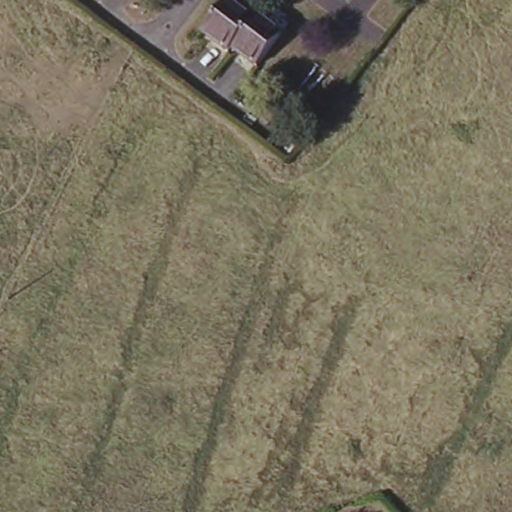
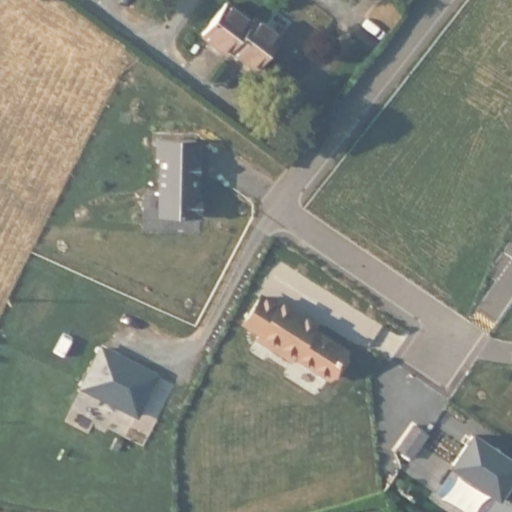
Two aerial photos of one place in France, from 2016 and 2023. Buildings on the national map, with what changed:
unchanged [(227,47),(223,51),(198,32),(223,1),(248,21),(253,15),(277,34),(253,65),(227,47)]
new [(195,160),(198,160),(197,199),(201,199),(200,220),(158,220),(159,161),(156,161),(157,141),(195,142),(195,160)]
new [(279,301),(307,319),(314,323),(310,327),(304,323),(344,350),(327,375),(294,354),(291,358),(257,337),(260,332),(244,321),(260,295),(276,305),(279,301)]
new [(102,347),(156,375),(137,413),(83,385),(102,347)]
new [(484,512),(495,495),(448,466),(470,431),(512,460),(512,512),(484,512)]

